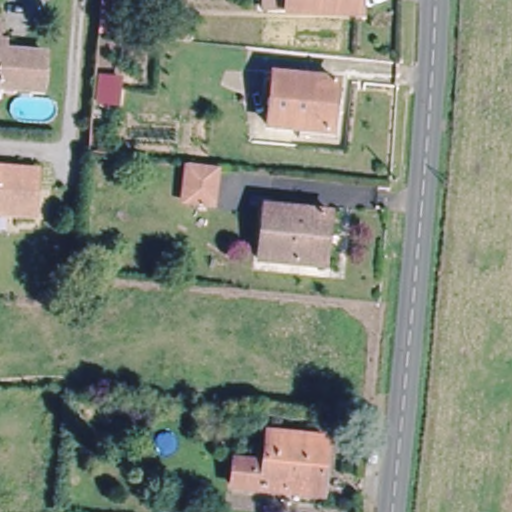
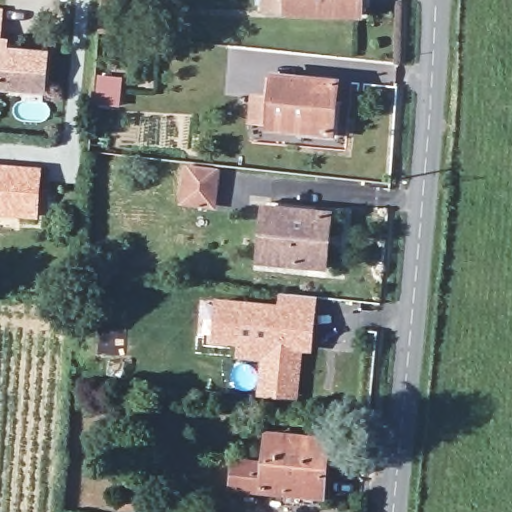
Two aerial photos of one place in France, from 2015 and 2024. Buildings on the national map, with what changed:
unchanged [(102,0),(119,0),(116,35),(99,34),(102,0)]
unchanged [(262,13),(262,0),(361,0),(360,15),(262,13)]
unchanged [(6,47),(47,52),(43,89),(1,84),(0,84),(0,37),(7,38),(6,47)]
unchanged [(323,133),(270,127),(274,79),(336,85),(334,102),(332,134),(323,133)]
unchanged [(0,160),(33,163),(29,210),(0,207),(0,160)]
unchanged [(213,207),(184,204),(189,168),(217,172),(213,207)]
unchanged [(315,261),(260,256),(265,207),(329,213),(327,230),(324,262),(315,261)]
new [(317,297),(311,354),(304,353),(300,405),(256,401),(260,360),(235,358),(237,345),(212,343),(216,298),(279,304),(280,293),(317,297)]
unchanged [(235,487),(237,465),(267,468),(270,438),(326,444),(321,496),(235,487)]

